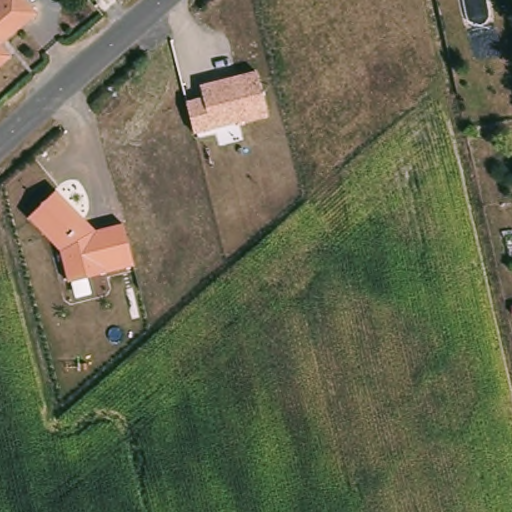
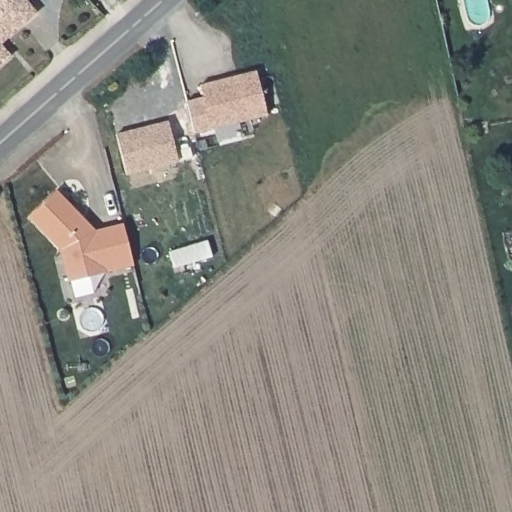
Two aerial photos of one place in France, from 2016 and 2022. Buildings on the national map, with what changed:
unchanged [(0,42),(0,0),(26,0),(36,11),(0,42)]
unchanged [(0,63),(0,44),(10,55),(0,63)]
unchanged [(270,116),(192,136),(185,99),(203,95),(201,84),(257,70),(270,116)]
new [(127,174),(117,133),(169,120),(177,161),(127,174)]
unchanged [(97,230),(124,224),(134,267),(68,282),(61,251),(27,218),(56,189),(97,230)]

